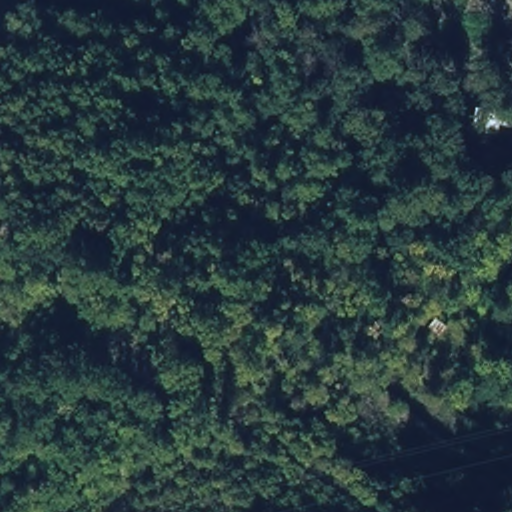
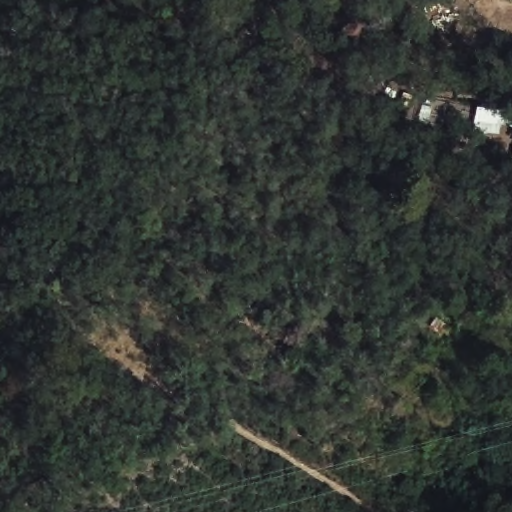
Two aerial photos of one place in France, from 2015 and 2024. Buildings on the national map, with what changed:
unchanged [(505,125),(503,135),(475,133),(477,109),(512,114),(512,127),(505,125)]

